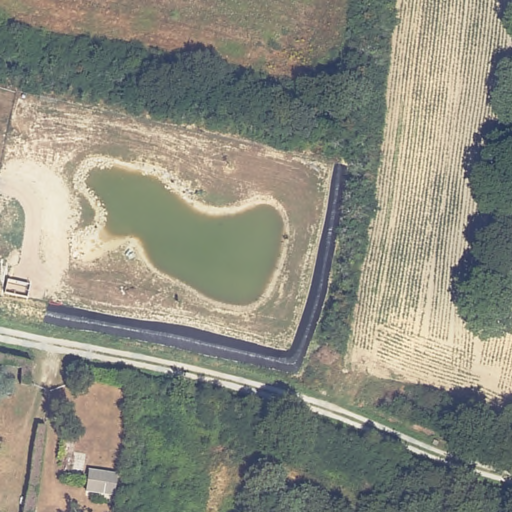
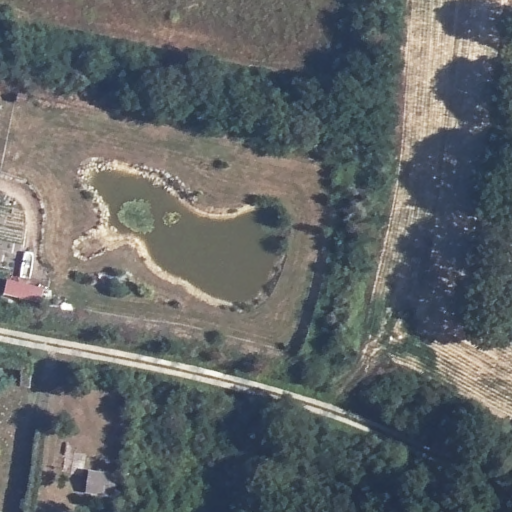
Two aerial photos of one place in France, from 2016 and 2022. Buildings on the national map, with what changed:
unchanged [(120,479),(115,500),(85,493),(91,473),(120,479)]

